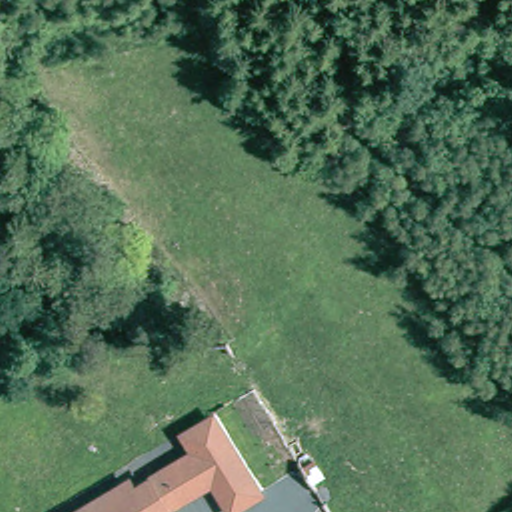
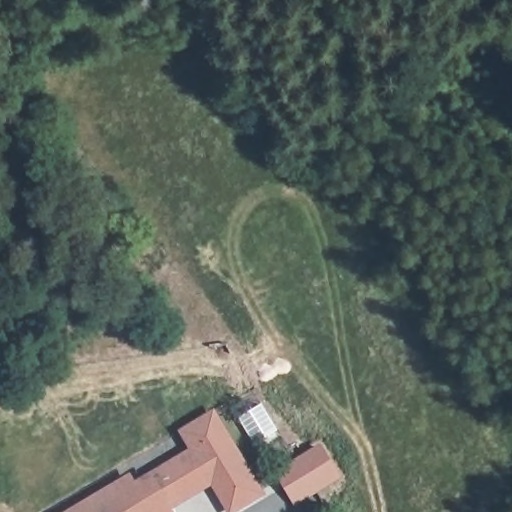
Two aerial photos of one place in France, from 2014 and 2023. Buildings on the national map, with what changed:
unchanged [(132,471),(137,478),(188,447),(178,431),(215,408),(268,492),(237,512),(231,512),(212,487),(172,508),(175,512),(63,512),(132,471)]
new [(343,477),(295,508),(272,471),(320,441),(343,477)]

